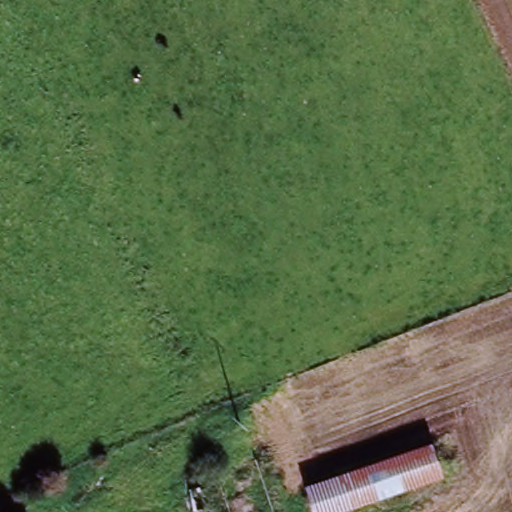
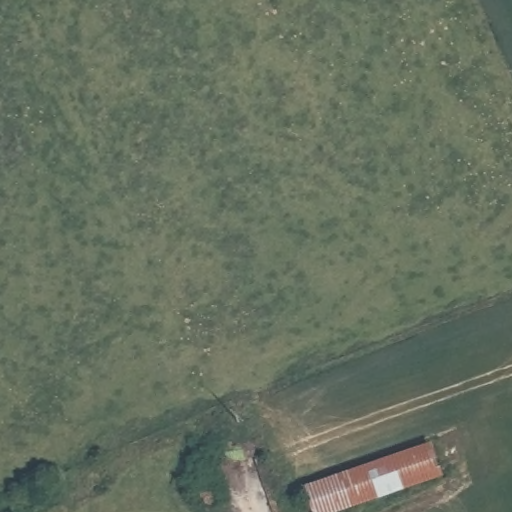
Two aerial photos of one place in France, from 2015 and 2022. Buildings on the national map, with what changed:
unchanged [(312,512),(303,492),(431,448),(442,484),(353,512),(312,512)]

